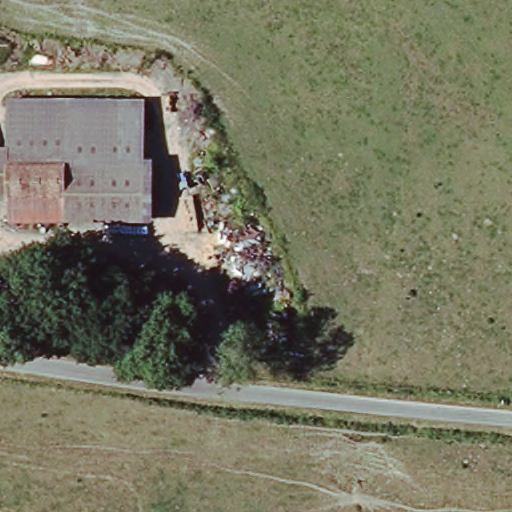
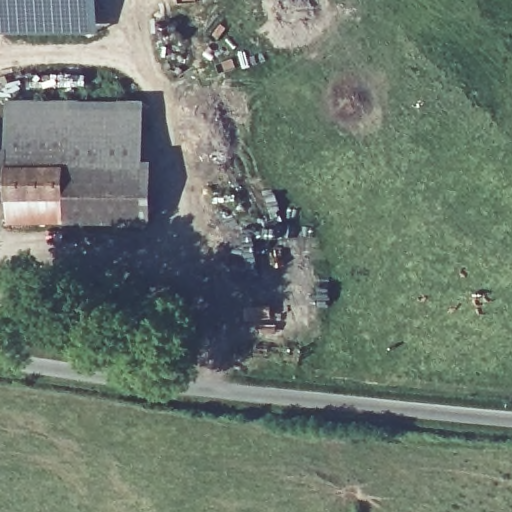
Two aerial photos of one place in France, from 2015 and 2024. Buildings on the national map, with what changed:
new [(100,0),(99,31),(0,31),(0,0),(100,0)]
unchanged [(9,99),(146,99),(147,166),(13,162),(11,143),(9,143),(9,99)]
unchanged [(11,143),(13,162),(147,166),(146,222),(13,221),(13,199),(0,200),(0,143),(11,143)]

